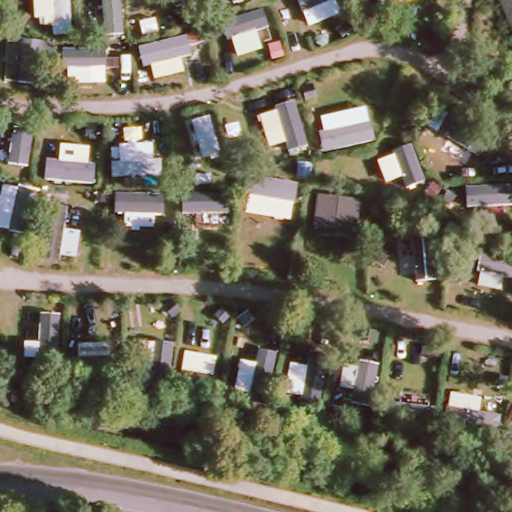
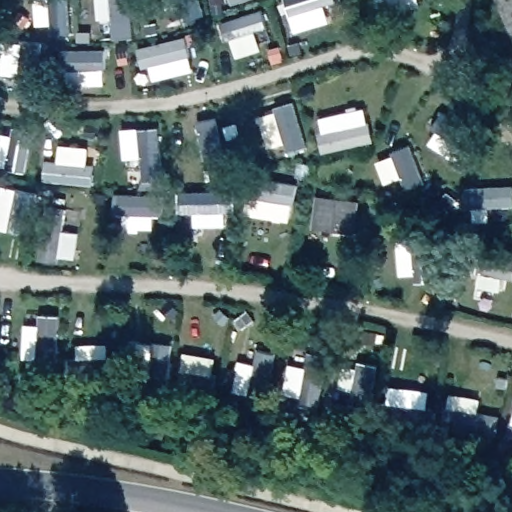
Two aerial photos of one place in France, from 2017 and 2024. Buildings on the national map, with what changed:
unchanged [(43,0),(66,0),(73,34),(49,39),(43,0)]
unchanged [(501,0),(512,0),(512,26),(501,0)]
unchanged [(310,230),(317,199),(353,202),(353,234),(310,230)]

